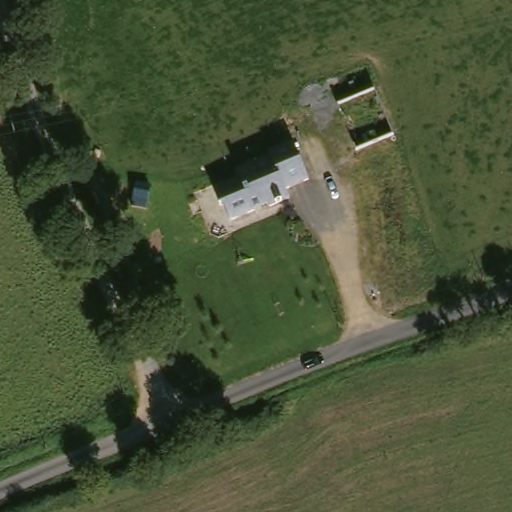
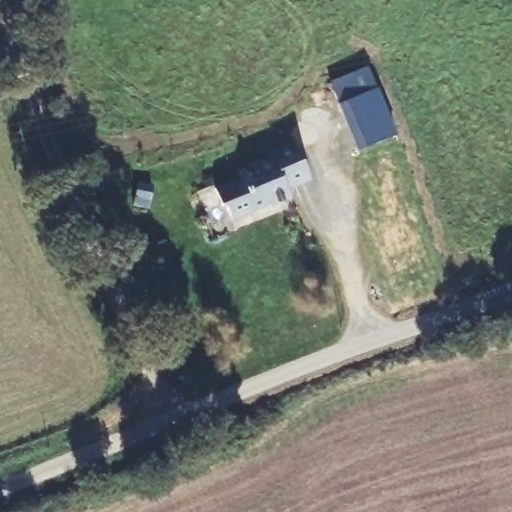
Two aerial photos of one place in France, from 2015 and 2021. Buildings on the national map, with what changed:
new [(337,104),(328,82),(368,67),(376,89),(394,136),(356,152),(337,104)]
unchanged [(239,177),(239,170),(268,161),(268,155),(289,147),(306,180),(288,191),(291,199),(273,207),(271,204),(234,220),(216,187),(239,177)]

